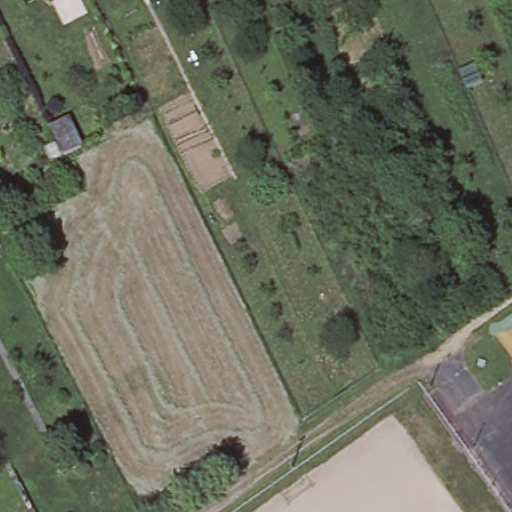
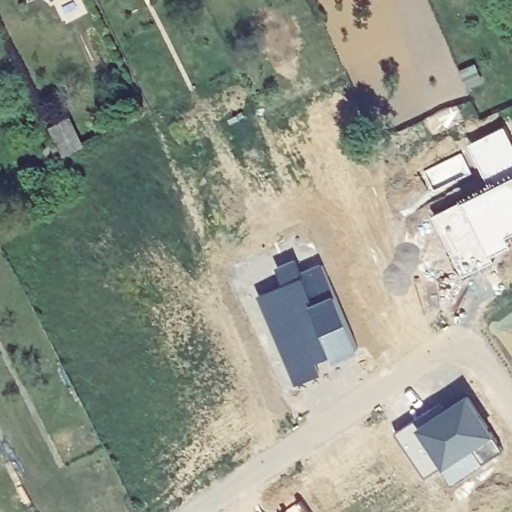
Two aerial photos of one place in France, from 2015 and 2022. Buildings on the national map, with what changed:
unchanged [(88,145),(69,155),(50,123),(68,114),(88,145)]
new [(465,146),(505,130),(512,146),(512,237),(505,241),(510,250),(489,259),(493,265),(460,280),(429,219),(489,192),(465,146)]
new [(282,286),(277,271),(297,263),(302,275),(321,268),(357,353),(331,367),(328,361),(315,367),(320,375),(294,387),(255,298),(282,286)]
new [(413,425),(418,432),(468,398),(492,438),(441,472),(440,471),(423,480),(395,435),(413,425)]
new [(302,508),(305,512),(297,512),(302,508)]

